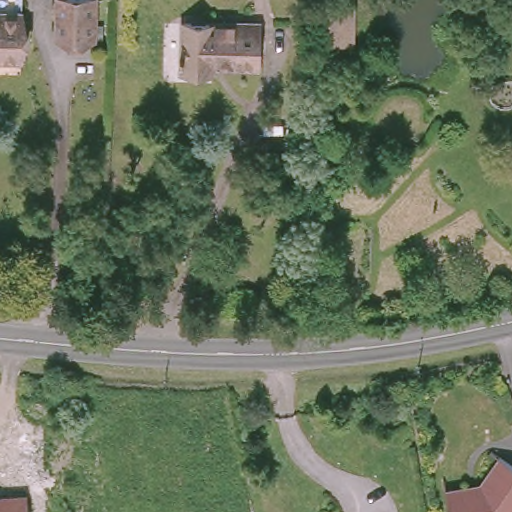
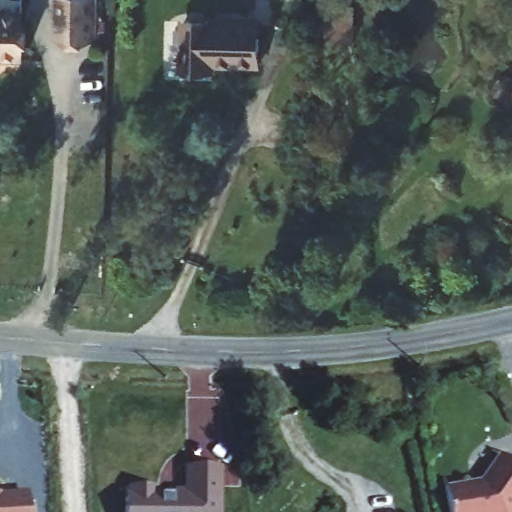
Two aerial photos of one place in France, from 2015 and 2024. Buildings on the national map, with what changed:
unchanged [(94,42),(55,43),(56,0),(92,0),(94,42)]
unchanged [(352,3),(351,41),(329,41),(331,2),(352,3)]
unchanged [(0,58),(0,15),(22,15),(22,58),(0,58)]
unchanged [(251,18),(251,59),(206,59),(204,67),(177,65),(179,16),(214,17),(251,18)]
unchanged [(454,512),(450,489),(486,482),(504,456),(512,461),(512,512),(454,512)]
new [(125,512),(125,489),(181,492),(183,466),(223,468),(222,512),(125,512)]
unchanged [(27,512),(0,512),(0,494),(25,492),(27,512)]

